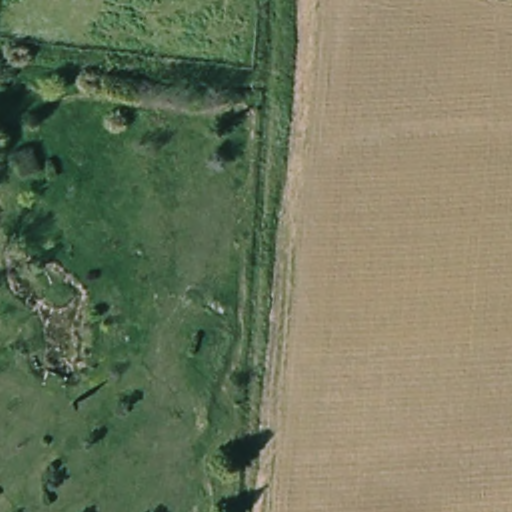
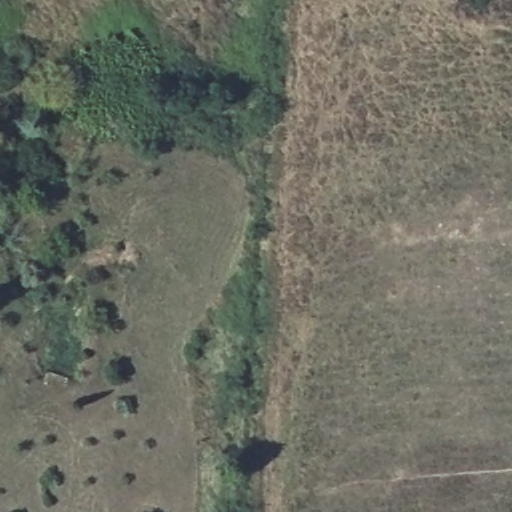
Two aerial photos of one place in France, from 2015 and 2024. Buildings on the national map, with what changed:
[]

